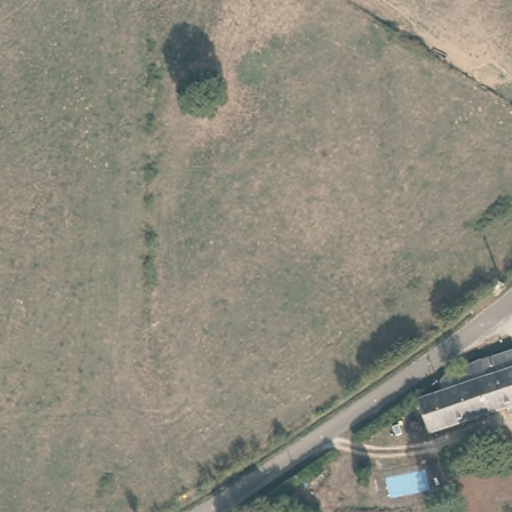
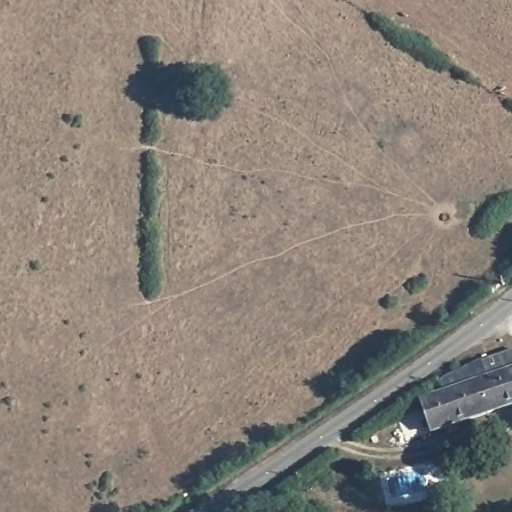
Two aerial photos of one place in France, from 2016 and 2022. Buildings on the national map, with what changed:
unchanged [(423,395),(445,386),(442,376),(459,366),(512,347),(512,401),(431,427),(423,395)]

